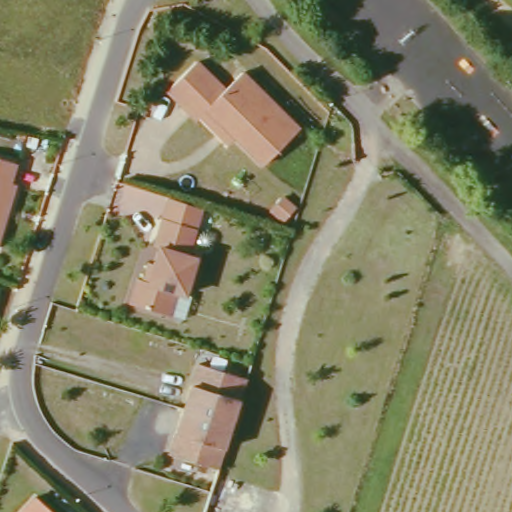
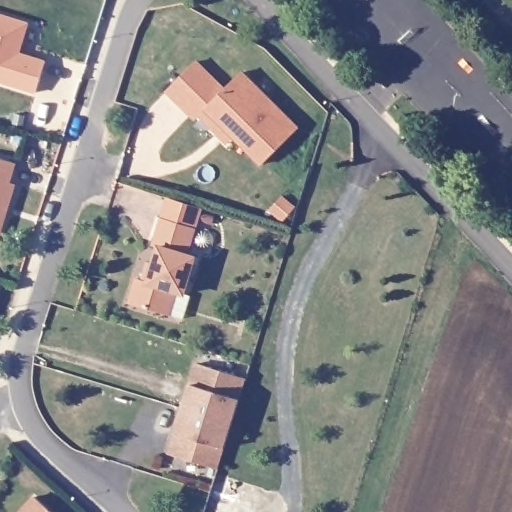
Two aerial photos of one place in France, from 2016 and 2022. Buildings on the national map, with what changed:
new [(36,94),(0,83),(0,15),(30,24),(21,54),(46,62),(36,94)]
unchanged [(206,117),(202,120),(175,90),(203,64),(230,91),(251,76),(305,132),(268,166),(240,138),(234,145),(206,117)]
unchanged [(0,254),(0,161),(21,168),(15,186),(22,189),(11,221),(0,254)]
unchanged [(280,196),(291,206),(277,220),(266,210),(280,196)]
unchanged [(202,265),(190,301),(182,298),(172,322),(135,308),(143,284),(154,287),(165,254),(160,252),(170,225),(178,205),(210,215),(202,236),(193,260),(202,265)]
unchanged [(171,456),(198,367),(246,382),(233,427),(218,472),(171,456)]
unchanged [(52,512),(31,512),(40,502),(52,512)]

